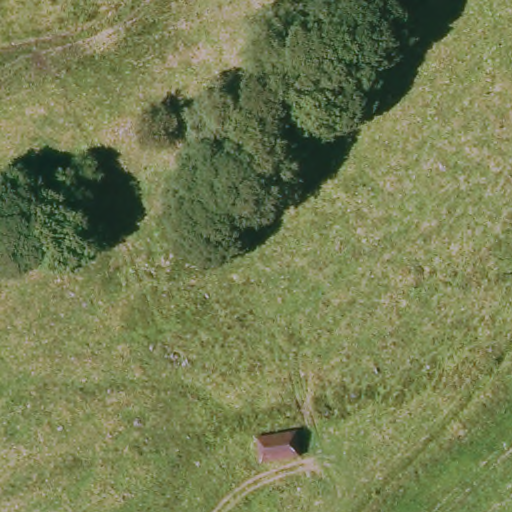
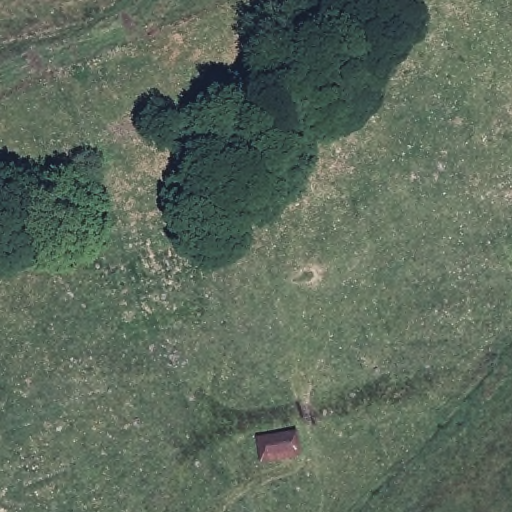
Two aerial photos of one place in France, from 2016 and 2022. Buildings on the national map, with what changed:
unchanged [(291,434),(295,464),(254,470),(251,440),(291,434)]

